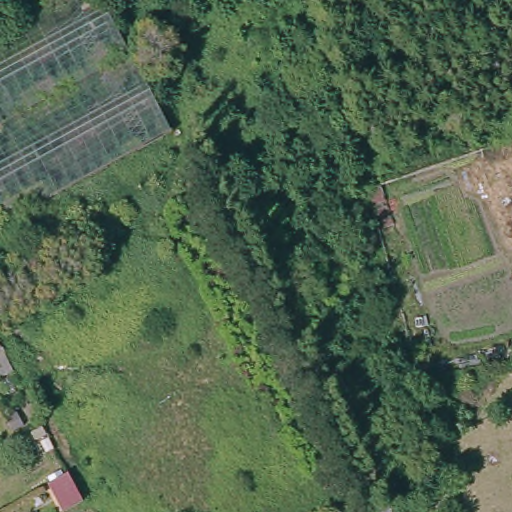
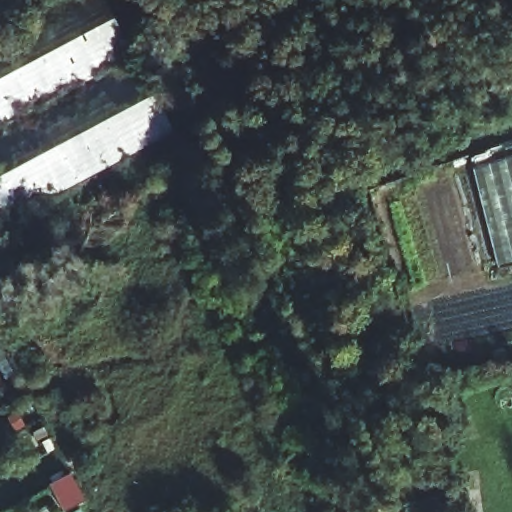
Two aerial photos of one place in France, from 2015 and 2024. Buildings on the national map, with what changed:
unchanged [(0,219),(0,23),(44,0),(104,0),(171,129),(0,219)]
new [(502,267),(479,170),(512,159),(512,264),(502,267)]
unchanged [(9,365),(0,369),(0,348),(5,357),(9,365)]
unchanged [(65,512),(62,512),(48,487),(69,476),(82,503),(65,512)]
unchanged [(388,512),(360,512),(360,511),(386,506),(388,505),(388,512)]

